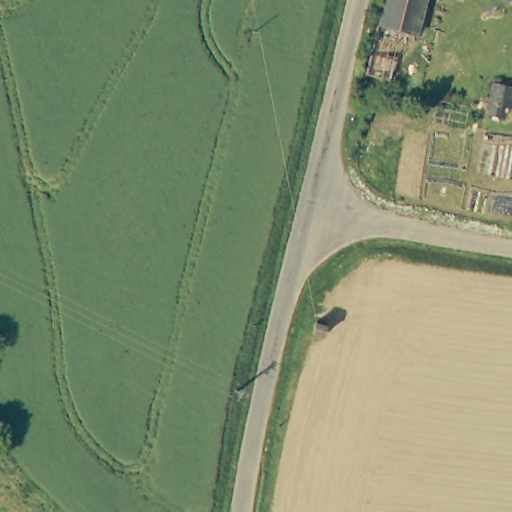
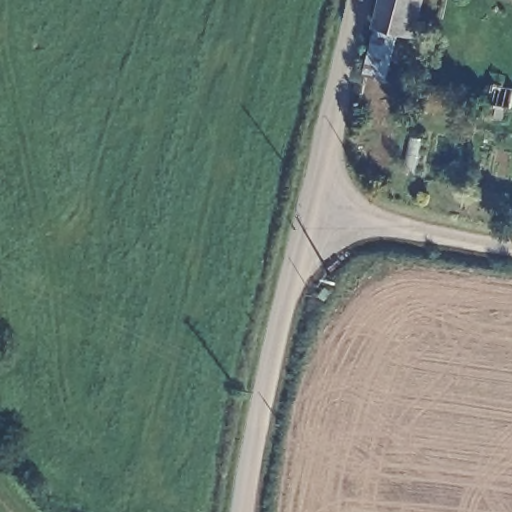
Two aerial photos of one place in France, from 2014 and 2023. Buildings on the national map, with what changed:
unchanged [(417,39),(400,35),(378,29),(385,0),(427,0),(417,39)]
unchanged [(388,83),(366,78),(378,29),(400,35),(388,83)]
unchanged [(503,122),(489,119),(491,108),(489,108),(493,87),(512,91),(512,105),(511,113),(504,112),(503,122)]

